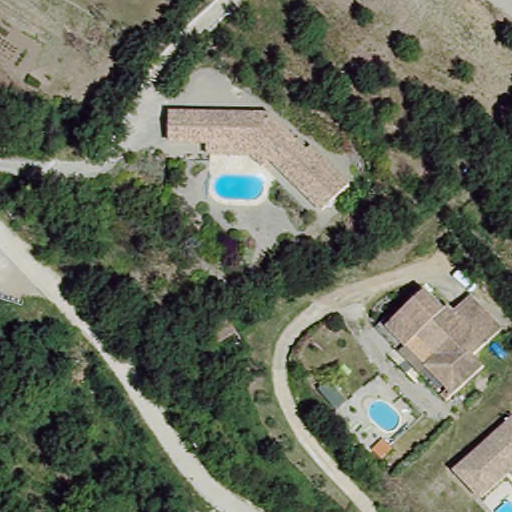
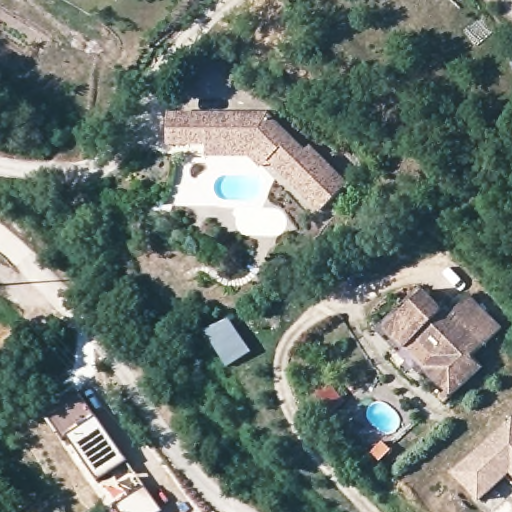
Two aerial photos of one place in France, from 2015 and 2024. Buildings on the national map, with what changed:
unchanged [(172,112),(269,111),(348,187),(322,212),(273,162),(252,160),(210,161),(209,146),(173,145),(172,112)]
unchanged [(387,324),(427,290),(443,307),(448,304),(454,310),(469,296),(500,327),(473,354),(484,368),(453,395),(387,324)]
unchanged [(222,366),(213,346),(207,336),(230,325),(236,335),(246,354),(222,366)]
new [(93,487),(41,420),(75,394),(127,461),(93,487)]
unchanged [(510,481),(479,506),(448,474),(512,417),(512,483),(510,481)]
new [(93,487),(125,462),(160,512),(108,512),(108,511),(93,487)]

